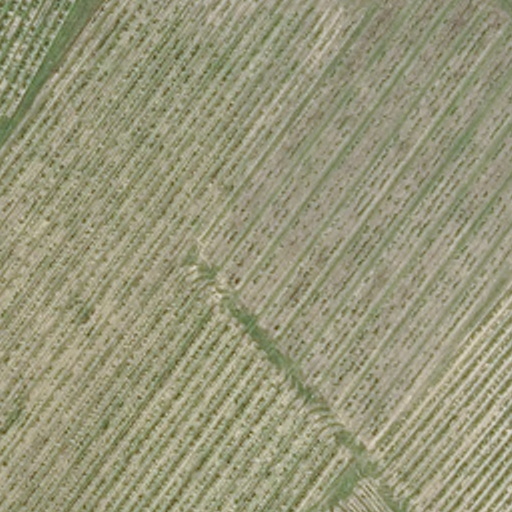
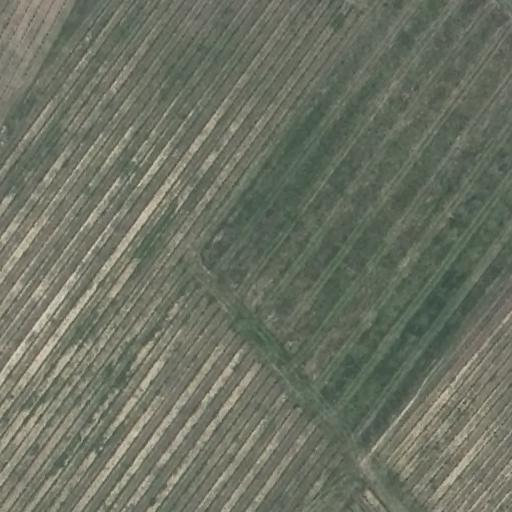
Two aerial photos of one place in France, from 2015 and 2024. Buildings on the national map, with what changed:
[]

